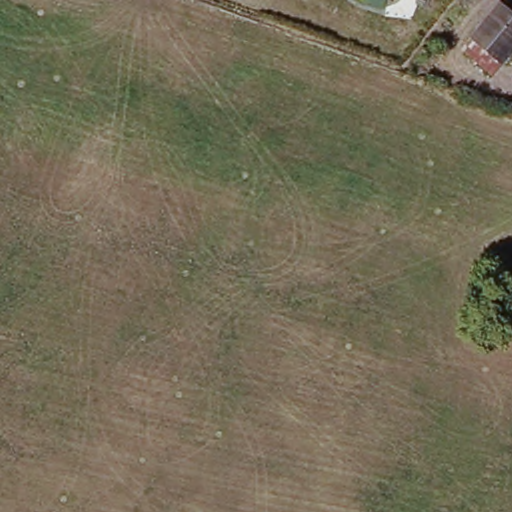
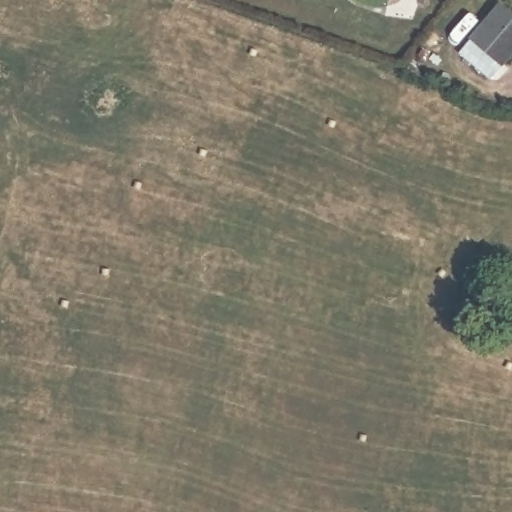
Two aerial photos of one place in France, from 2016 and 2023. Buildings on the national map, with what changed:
unchanged [(498,7),(512,17),(512,57),(499,75),(464,51),(498,7)]

